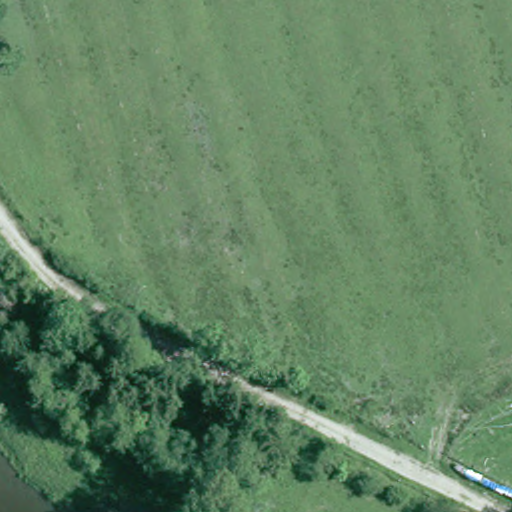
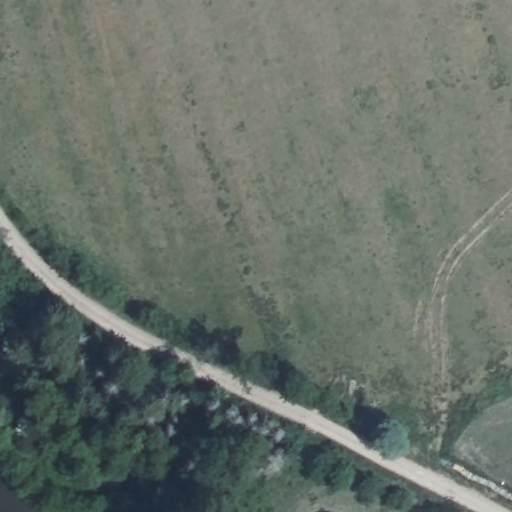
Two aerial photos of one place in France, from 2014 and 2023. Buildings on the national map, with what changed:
[]

